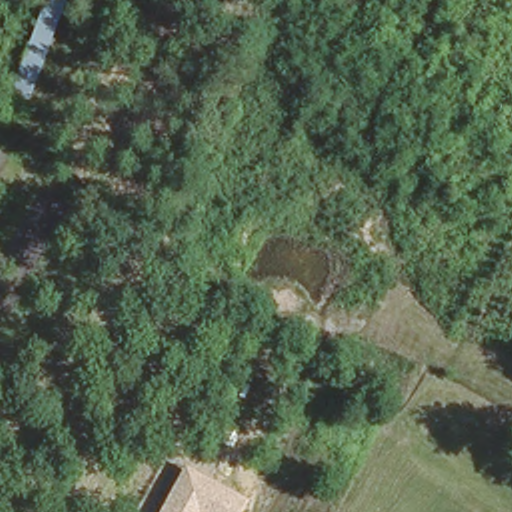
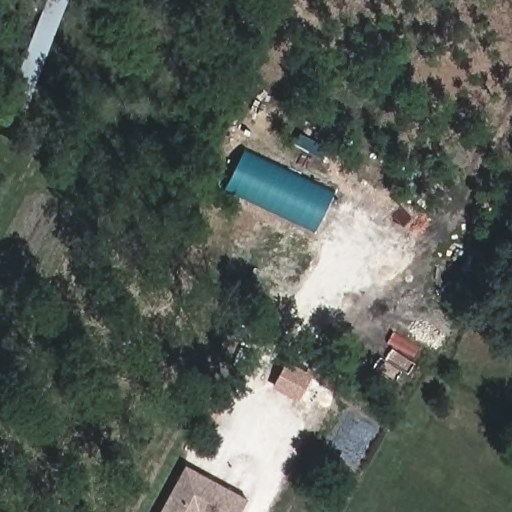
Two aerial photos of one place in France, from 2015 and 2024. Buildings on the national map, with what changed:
unchanged [(42,0),(70,0),(28,115),(7,109),(42,0)]
new [(226,188),(246,149),(333,191),(314,230),(226,188)]
unchanged [(241,512),(161,512),(185,464),(249,497),(241,512)]

